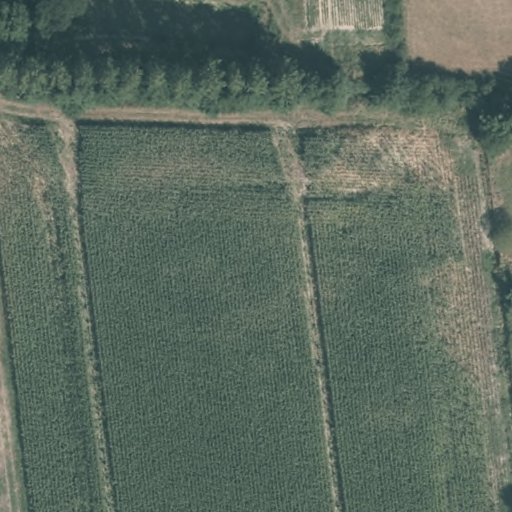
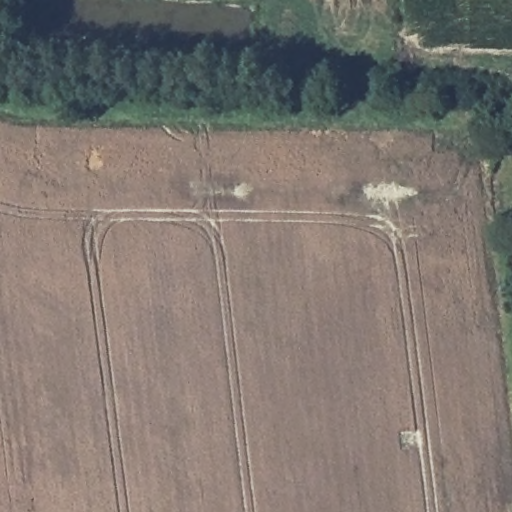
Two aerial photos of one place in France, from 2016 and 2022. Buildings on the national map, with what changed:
[]

